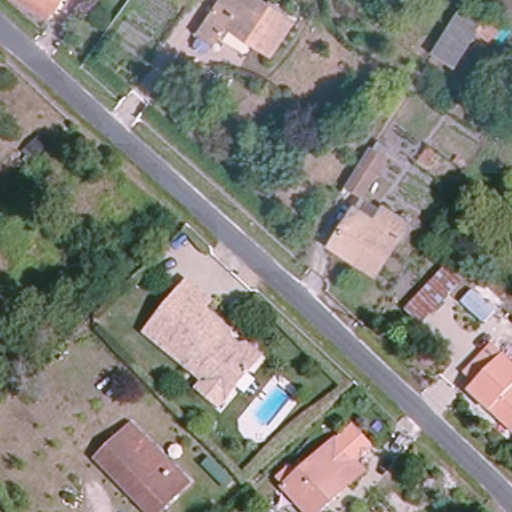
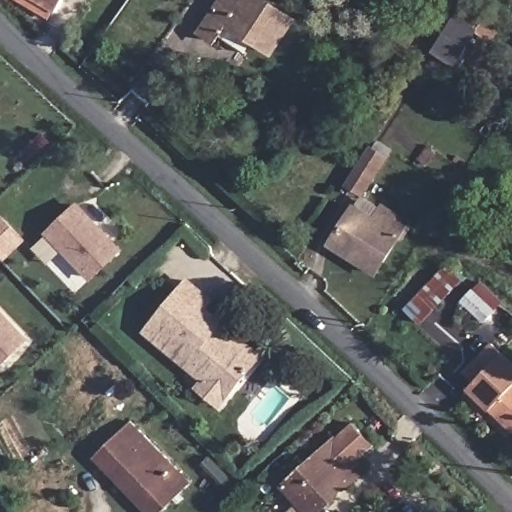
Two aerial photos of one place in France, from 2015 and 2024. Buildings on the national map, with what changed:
unchanged [(33,0),(62,0),(56,12),(33,0)]
unchanged [(230,23),(217,43),(202,33),(222,0),(272,0),(295,15),(270,52),(230,23)]
unchanged [(482,29),(461,14),(468,2),(512,30),(512,32),(497,54),(475,40),(482,29)]
unchanged [(436,52),(461,14),(482,29),(475,40),(460,67),(436,52)]
unchanged [(370,192),(351,179),(371,147),(390,157),(370,192)]
new [(43,234),(77,202),(124,248),(90,282),(43,234)]
unchanged [(361,207),(375,215),(388,202),(415,225),(375,276),(332,242),(361,207)]
unchanged [(422,324),(406,309),(448,265),(464,282),(422,324)]
unchanged [(483,327),(464,302),(483,280),(506,302),(483,327)]
unchanged [(197,391),(202,384),(185,370),(142,336),(160,315),(185,283),(207,302),(201,311),(218,326),(226,332),(259,358),(254,366),(227,398),(219,408),(197,391)]
new [(0,366),(0,309),(29,340),(0,366)]
unchanged [(503,353),(512,362),(512,435),(468,393),(503,353)]
unchanged [(130,416),(197,487),(165,512),(146,512),(90,453),(130,416)]
unchanged [(363,455),(342,433),(355,422),(376,447),(363,455)]
unchanged [(336,432),(370,470),(325,512),(304,512),(278,484),(336,432)]

